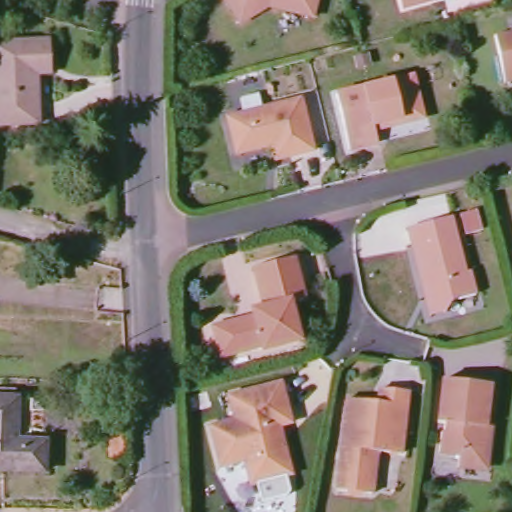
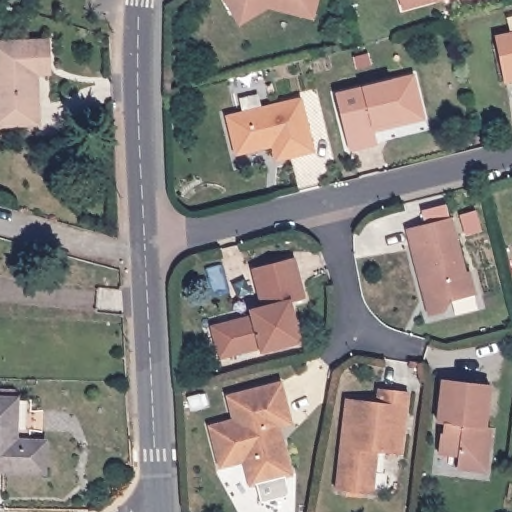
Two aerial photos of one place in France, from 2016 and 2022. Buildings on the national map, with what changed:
unchanged [(269,6),(241,23),(227,0),(317,0),(313,16),(269,6)]
unchanged [(400,0),(441,0),(404,12),(400,0)]
unchanged [(512,31),(512,80),(503,82),(493,35),(512,31)]
unchanged [(0,126),(0,44),(49,41),(49,63),(50,75),(38,75),(39,125),(0,126)]
unchanged [(372,128),(375,141),(348,147),(334,92),(411,75),(419,105),(421,116),(372,128)]
unchanged [(302,95),(313,146),(275,155),(272,142),(263,144),(264,148),(237,154),(227,111),(302,95)]
unchanged [(415,256),(408,227),(453,217),(459,246),(415,256)]
unchanged [(426,300),(431,289),(422,284),(415,256),(459,246),(465,272),(470,271),(476,296),(452,301),(446,311),(430,315),(426,300)]
unchanged [(288,301),(298,339),(261,349),(260,345),(220,355),(213,325),(252,316),(250,309),(263,306),(259,289),(254,266),(293,256),(299,281),(303,297),(288,301)]
unchanged [(457,466),(458,454),(437,451),(439,432),(442,432),(444,422),(436,421),(442,379),(488,384),(484,426),(489,427),(485,459),(474,468),(457,466)]
unchanged [(277,382),(286,418),(283,422),(267,426),(270,436),(275,435),(281,437),(289,469),(285,475),(253,483),(248,481),(243,458),(219,464),(208,424),(232,418),(226,395),(277,382)]
unchanged [(410,393),(403,455),(378,452),(374,494),(337,490),(348,398),(378,402),(379,389),(410,393)]
unchanged [(16,395),(16,436),(45,437),(44,468),(0,466),(0,394),(16,395)]
unchanged [(106,430),(127,431),(127,464),(108,460),(106,430)]

